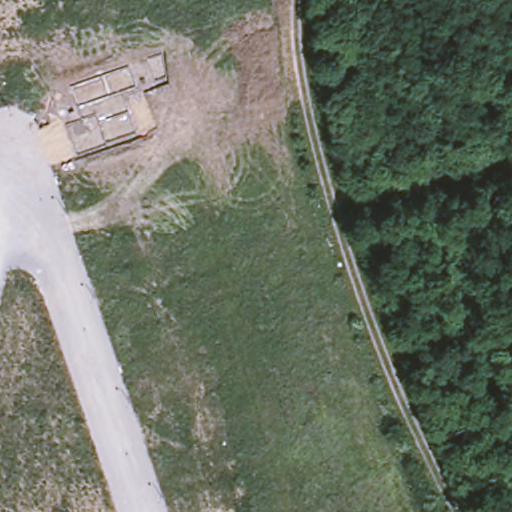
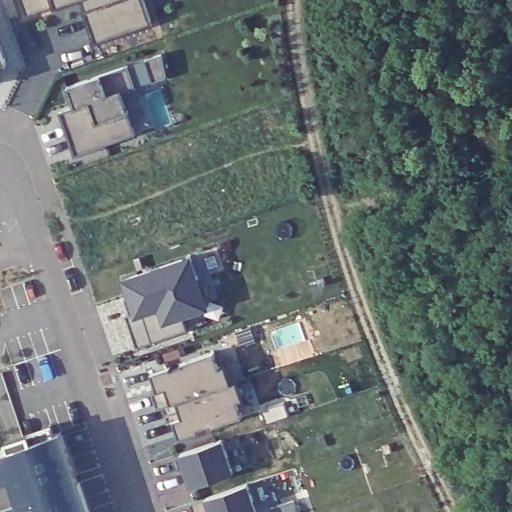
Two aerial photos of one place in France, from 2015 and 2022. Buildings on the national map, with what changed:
unchanged [(22,0),(76,0),(28,17),(22,0)]
unchanged [(97,45),(85,9),(92,6),(91,0),(146,0),(155,25),(97,45)]
new [(0,65),(0,42),(7,62),(0,65)]
new [(136,86),(122,90),(128,110),(135,132),(103,142),(104,145),(76,155),(62,111),(75,104),(70,87),(101,76),(103,74),(130,66),(136,86)]
new [(128,279),(193,257),(201,279),(210,307),(204,309),(186,316),(190,330),(140,347),(129,316),(139,312),(135,298),(128,279)]
new [(178,422),(172,423),(166,407),(160,408),(155,392),(161,391),(155,373),(174,367),(175,370),(186,366),(185,363),(217,352),(223,368),(228,366),(235,383),(240,382),(246,398),(240,400),(246,416),(213,427),(212,425),(201,429),(202,432),(183,438),(178,422)]
new [(0,451),(60,431),(90,512),(0,512),(0,451)]
new [(225,440),(236,473),(195,487),(189,468),(182,471),(177,456),(225,440)]
new [(251,484),(260,512),(196,512),(193,503),(251,484)]

